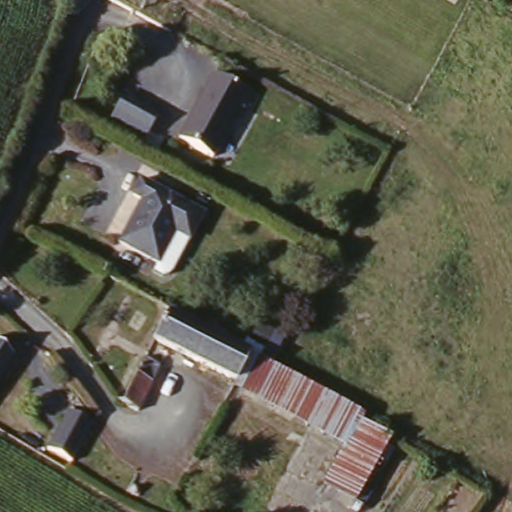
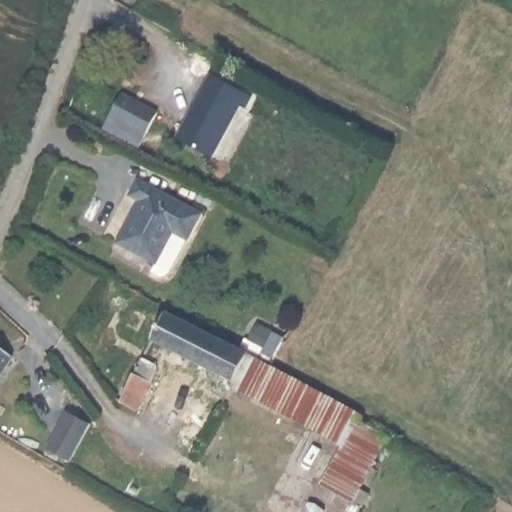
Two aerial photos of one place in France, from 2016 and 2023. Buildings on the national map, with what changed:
unchanged [(218,78),(256,97),(250,108),(245,106),(219,157),(186,141),(218,78)]
unchanged [(125,96),(159,115),(147,137),(113,118),(125,96)]
unchanged [(202,210),(187,237),(169,231),(154,259),(117,239),(140,197),(129,192),(137,177),(202,210)]
unchanged [(157,344),(166,313),(178,319),(248,353),(234,381),(157,344)]
unchanged [(16,356),(0,384),(0,338),(16,356)]
unchanged [(141,352),(159,358),(143,406),(126,402),(141,352)]
unchanged [(269,399),(234,381),(248,353),(270,365),(276,367),(283,372),(269,399)]
unchanged [(363,423),(352,443),(269,399),(283,372),(366,418),(363,423)]
unchanged [(98,417),(81,451),(59,441),(61,436),(75,406),(91,413),(98,417)]
unchanged [(356,496),(329,480),(352,443),(363,423),(391,438),(356,496)]

